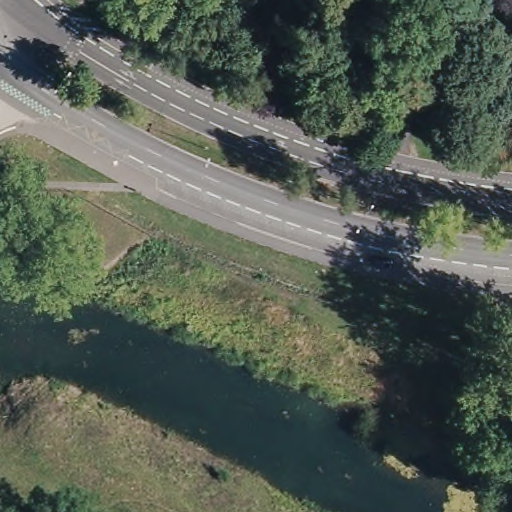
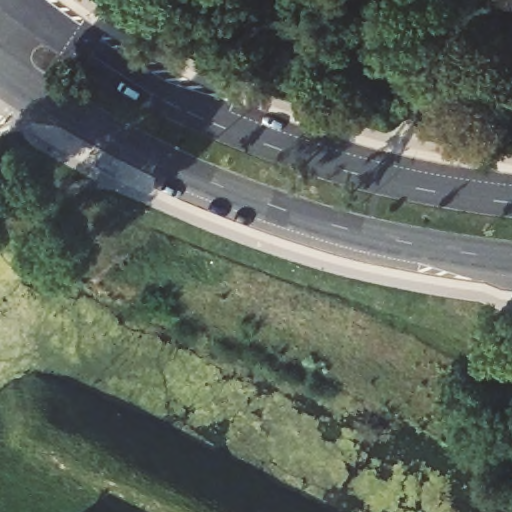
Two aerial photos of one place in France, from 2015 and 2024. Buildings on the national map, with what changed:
[]

